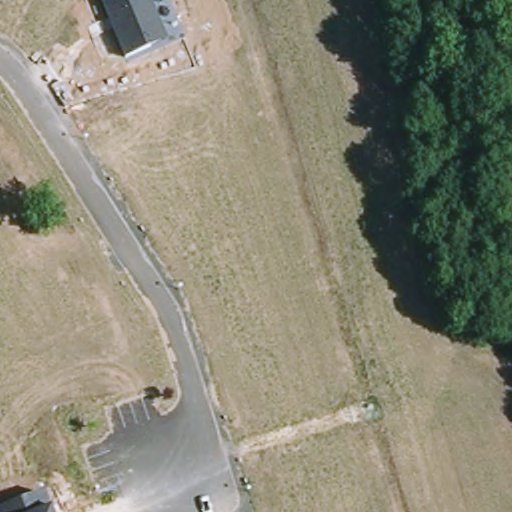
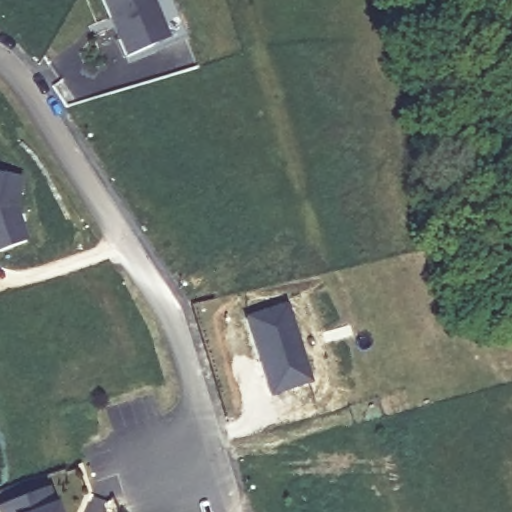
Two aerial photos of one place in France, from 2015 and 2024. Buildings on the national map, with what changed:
unchanged [(166,41),(124,57),(101,0),(150,0),(166,41)]
new [(11,211),(22,244),(0,251),(0,177),(17,181),(11,211)]
new [(284,304),(308,386),(270,398),(246,316),(284,304)]
unchanged [(0,512),(0,505),(44,491),(51,512),(0,512)]

